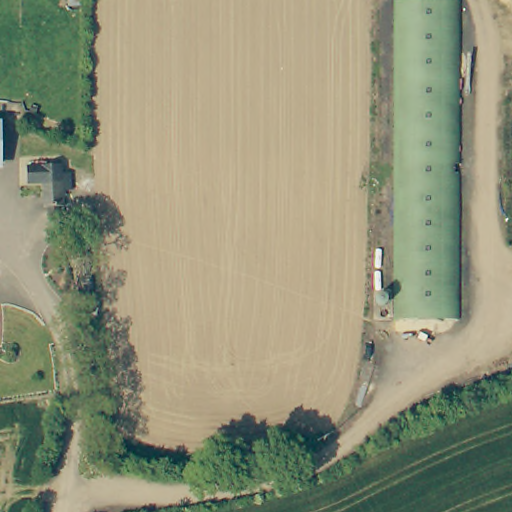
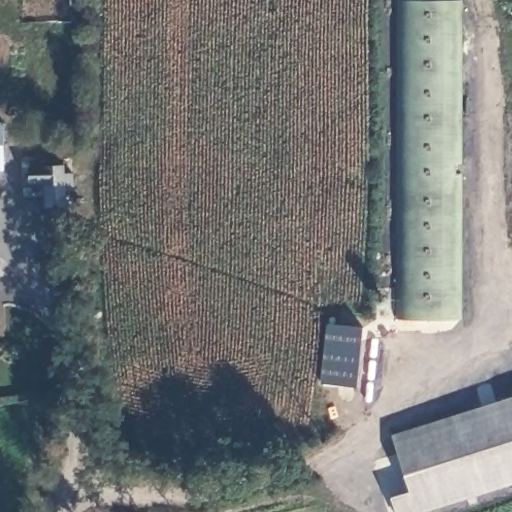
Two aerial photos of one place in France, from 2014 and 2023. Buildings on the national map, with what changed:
unchanged [(465,4),(461,317),(401,317),(402,3),(465,4)]
unchanged [(2,163),(0,163),(0,123),(2,123),(2,163)]
unchanged [(60,206),(60,215),(50,216),(50,207),(45,207),(45,184),(30,184),(30,166),(44,166),(65,166),(65,174),(75,174),(75,190),(65,190),(65,206),(60,206)]
new [(426,512),(395,512),(390,498),(409,491),(391,434),(512,395),(512,484),(426,512)]

